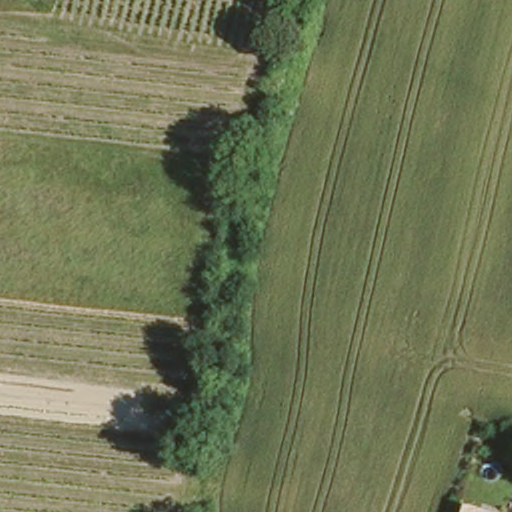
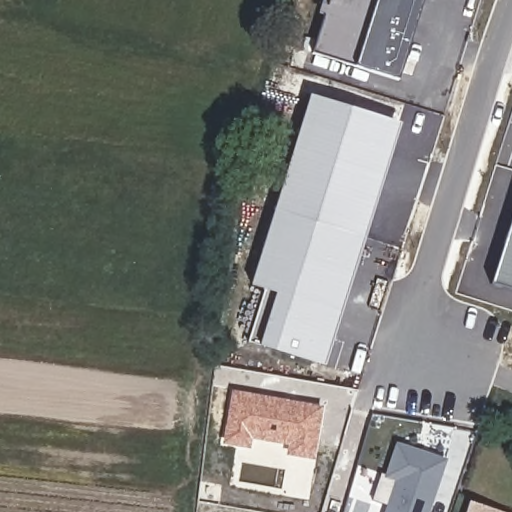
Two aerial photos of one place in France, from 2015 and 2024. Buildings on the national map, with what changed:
new [(331,0),(426,0),(402,81),(315,54),(331,0)]
new [(252,285),(311,96),(401,125),(366,240),(287,215),(263,289),(252,285)]
new [(276,295),(263,291),(287,215),(366,240),(325,369),(259,348),(276,295)]
new [(512,292),(494,287),(512,229),(512,292)]
new [(232,391),(324,407),(314,461),(287,456),(289,445),(248,438),(246,448),(222,445),(232,391)]
new [(390,474),(400,442),(448,457),(429,512),(388,512),(400,477),(390,474)]
unchanged [(486,505),(484,512),(457,512),(462,498),(486,505)]
new [(484,512),(486,505),(508,512),(484,512)]

